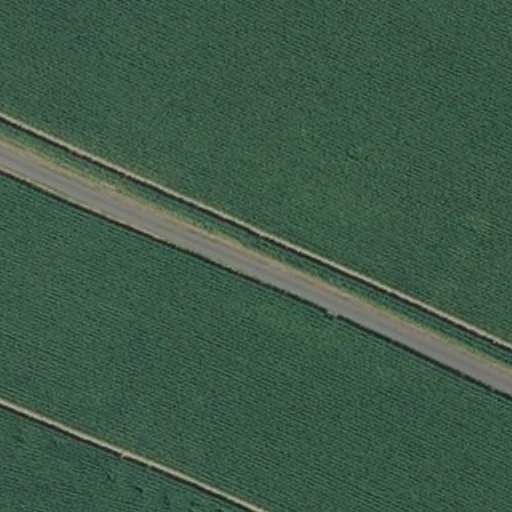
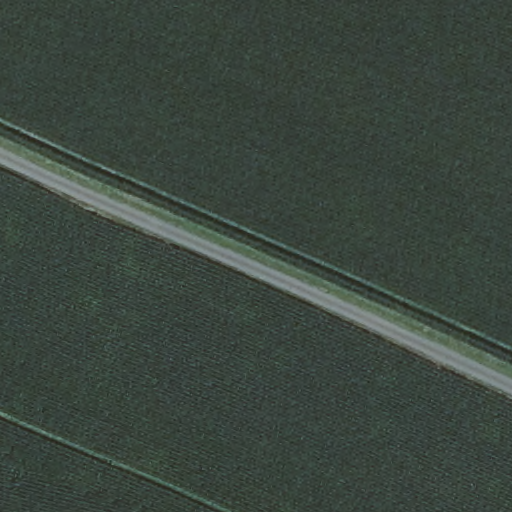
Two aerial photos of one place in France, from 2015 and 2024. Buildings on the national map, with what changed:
[]

